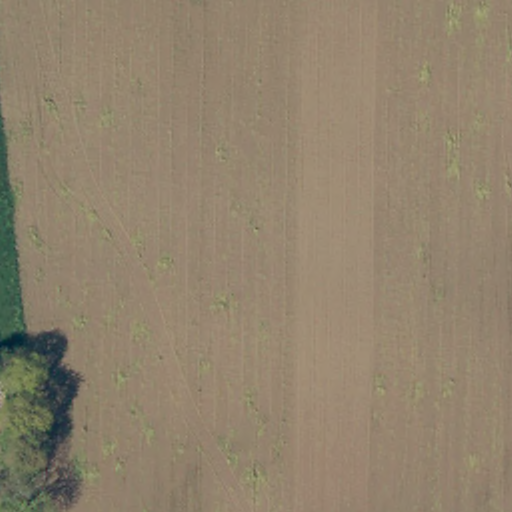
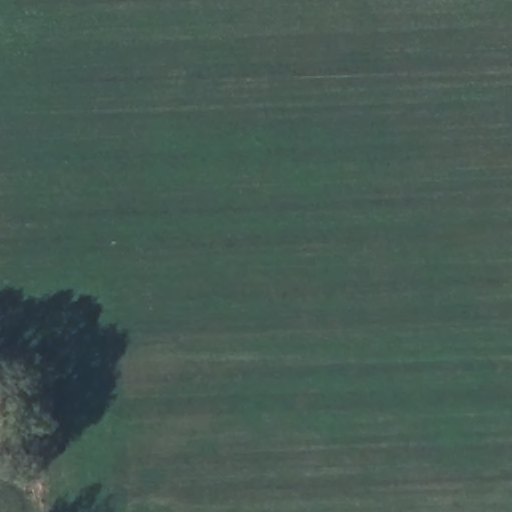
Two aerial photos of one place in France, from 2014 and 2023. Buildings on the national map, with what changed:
[]

